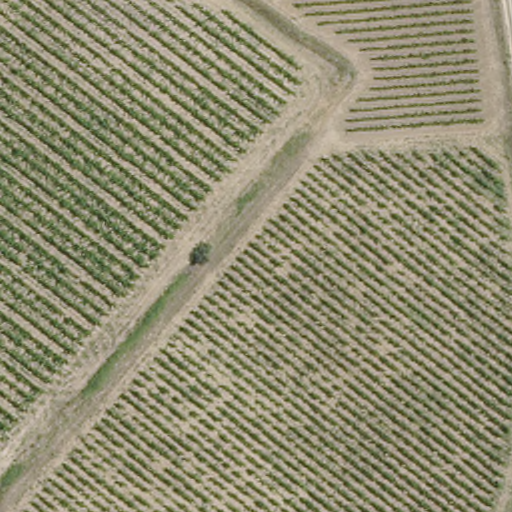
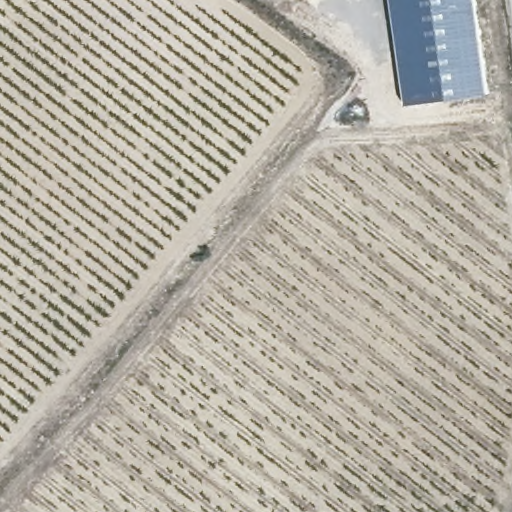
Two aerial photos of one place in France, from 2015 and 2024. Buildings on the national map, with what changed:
new [(402,104),(387,0),(472,0),(484,92),(402,104)]

